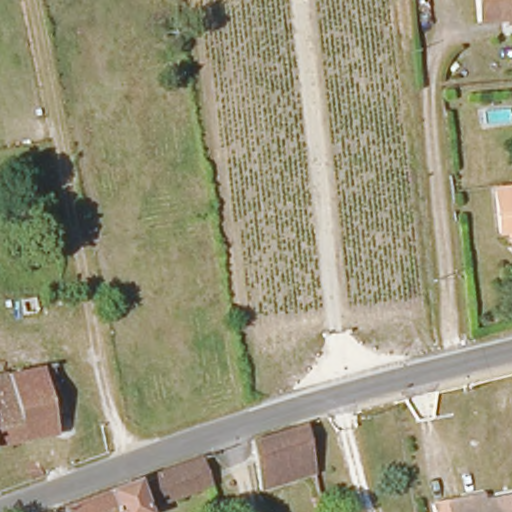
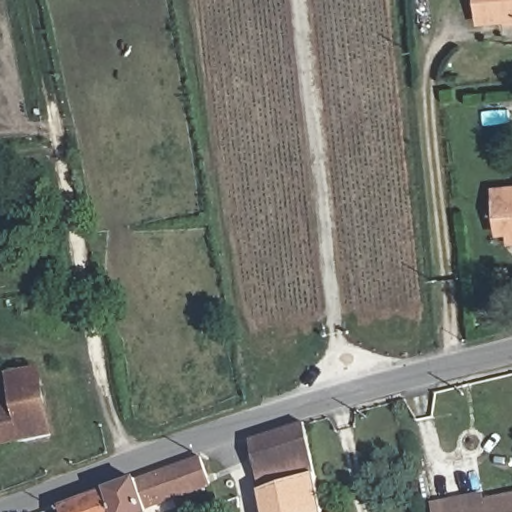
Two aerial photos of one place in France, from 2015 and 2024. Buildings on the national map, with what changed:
unchanged [(474,0),(512,0),(512,21),(477,25),(474,0)]
unchanged [(510,239),(500,241),(495,198),(512,195),(512,250),(510,250),(510,239)]
unchanged [(37,314),(23,316),(20,298),(36,295),(37,314)]
unchanged [(39,370),(48,438),(0,447),(0,376),(39,370)]
unchanged [(313,472),(260,489),(250,438),(304,421),(313,472)]
unchanged [(200,454),(209,484),(145,508),(146,512),(63,512),(60,505),(200,454)]
new [(313,472),(321,512),(261,512),(257,492),(260,489),(313,472)]
unchanged [(460,498),(481,494),(481,499),(511,494),(512,493),(512,512),(431,512),(429,504),(448,500),(460,498)]
new [(352,509),(353,512),(338,512),(352,509)]

